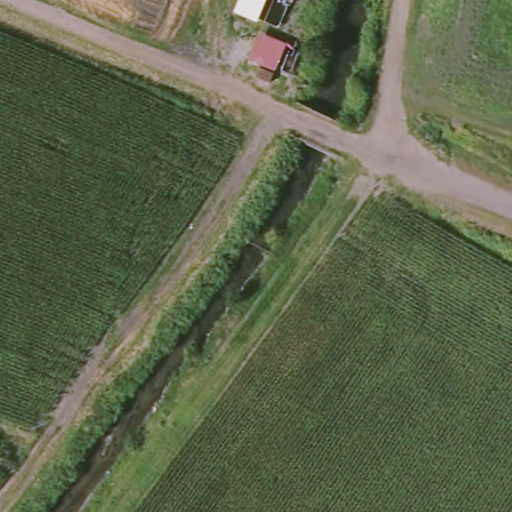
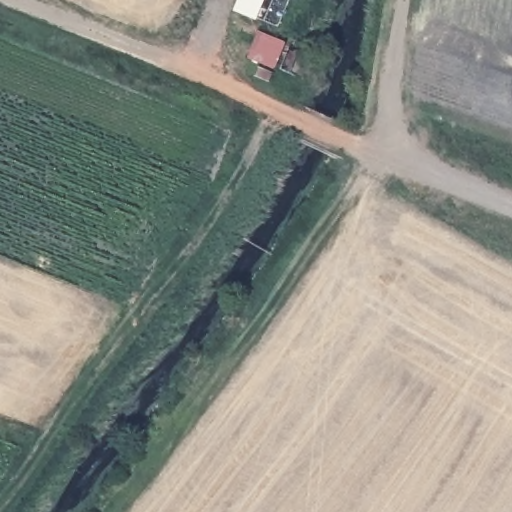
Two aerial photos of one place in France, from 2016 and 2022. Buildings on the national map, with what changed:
unchanged [(239,0),(292,0),(280,29),(261,17),(260,24),(233,12),(239,0)]
unchanged [(286,44),(276,66),(273,81),(259,78),(256,77),(258,71),(261,63),(251,60),(262,34),(286,44)]

